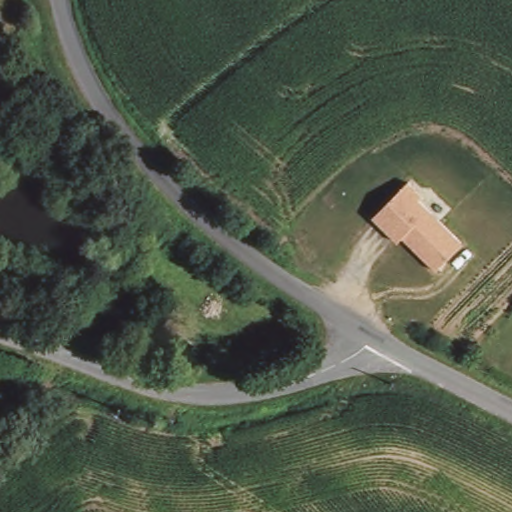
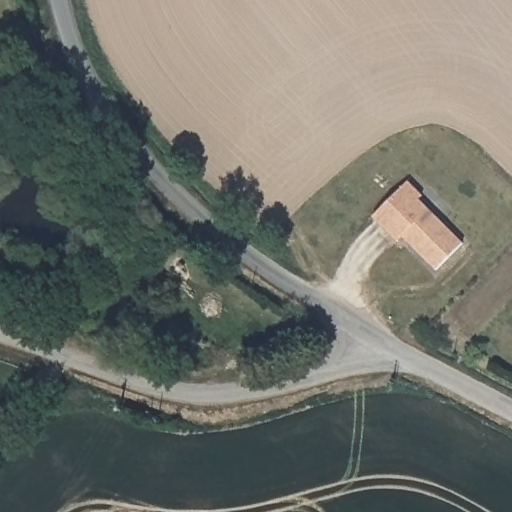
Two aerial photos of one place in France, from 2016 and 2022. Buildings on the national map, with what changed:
unchanged [(400,239),(397,242),(372,218),(405,181),(422,196),(418,202),(461,244),(435,273),(400,239)]

